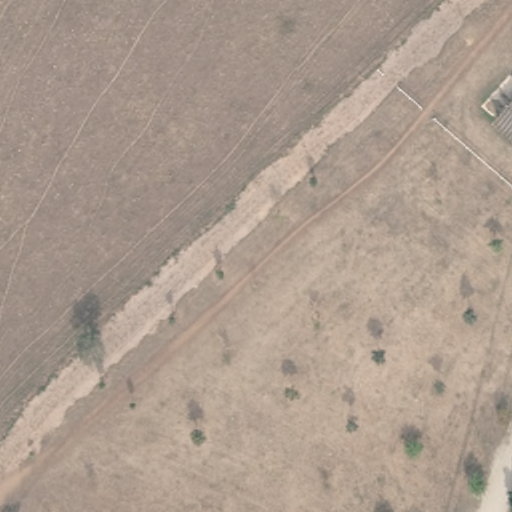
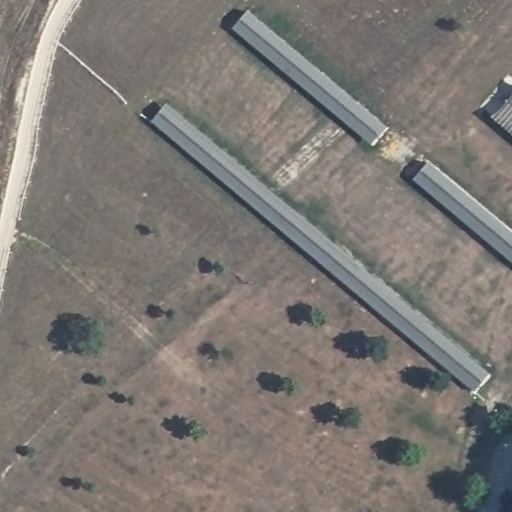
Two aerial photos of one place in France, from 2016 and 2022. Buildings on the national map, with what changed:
new [(235,30),(249,14),(387,127),(372,144),(235,30)]
unchanged [(512,94),(512,136),(491,118),(512,94)]
new [(153,122),(169,104),(490,374),(475,393),(153,122)]
new [(428,165),(512,234),(512,262),(415,181),(428,165)]

